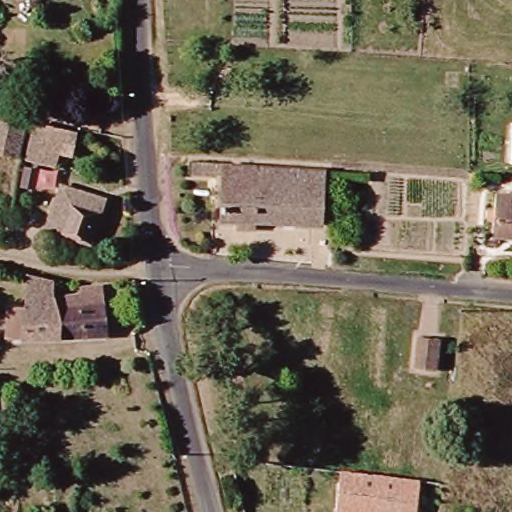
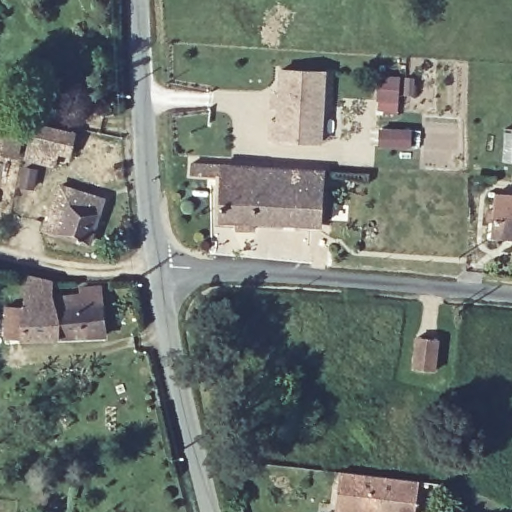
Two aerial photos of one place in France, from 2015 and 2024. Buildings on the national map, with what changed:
new [(270,123),(276,123),(279,70),(323,74),(318,143),(268,140),(270,123)]
new [(378,78),(397,79),(395,103),(395,112),(376,111),(376,101),(378,78)]
unchanged [(0,146),(0,110),(31,116),(23,151),(0,146)]
unchanged [(62,146),(58,161),(38,155),(47,121),(86,131),(81,151),(62,146)]
new [(506,164),(509,127),(512,127),(512,164),(506,164)]
unchanged [(324,165),(322,220),(255,218),(255,224),(241,224),(241,218),(223,217),(224,173),(194,172),(194,160),(324,165)]
unchanged [(92,243),(49,229),(64,183),(107,198),(92,243)]
unchanged [(512,193),(512,236),(500,237),(500,194),(512,193)]
unchanged [(6,308),(21,308),(22,275),(48,285),(56,287),(56,300),(82,298),(81,292),(100,290),(106,337),(22,342),(6,337),(6,308)]
unchanged [(415,368),(417,336),(437,337),(434,369),(415,368)]
unchanged [(419,480),(417,512),(337,512),(341,472),(419,480)]

